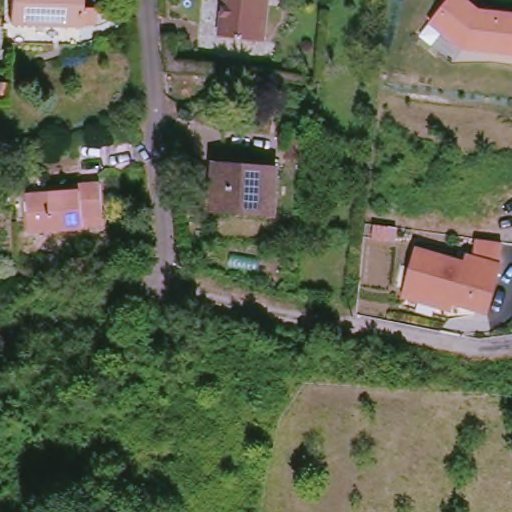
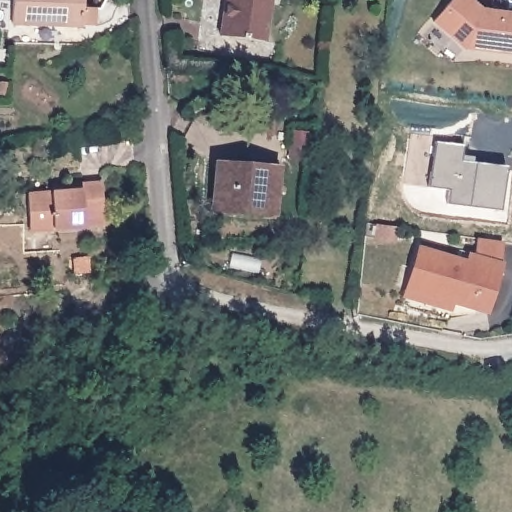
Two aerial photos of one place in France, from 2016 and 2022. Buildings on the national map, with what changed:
unchanged [(93,24),(82,24),(82,25),(13,23),(14,0),(83,0),(83,9),(94,10),(93,24)]
unchanged [(270,46),(226,40),(231,0),(285,0),(285,4),(275,2),(270,46)]
unchanged [(512,13),(512,54),(484,51),(471,40),(465,49),(432,22),(449,0),(469,0),(481,10),(512,13)]
new [(449,204),(451,189),(430,185),(435,142),(462,145),(460,161),(507,167),(503,210),(471,206),(449,204)]
unchanged [(280,219),(218,215),(221,170),(283,175),(280,219)]
unchanged [(84,224),(84,226),(31,230),(28,195),(51,193),(51,187),(63,186),(102,184),(104,214),(102,214),(102,222),(84,224)]
unchanged [(405,295),(407,288),(419,249),(468,262),(471,255),(501,265),(488,311),(453,301),(451,309),(405,295)]

